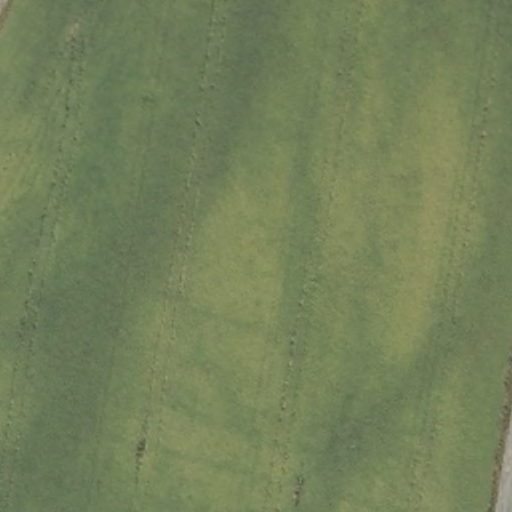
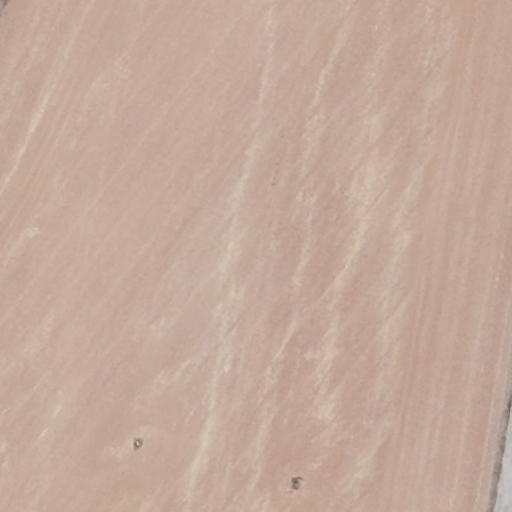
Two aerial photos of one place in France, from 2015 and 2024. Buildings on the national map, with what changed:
[]

